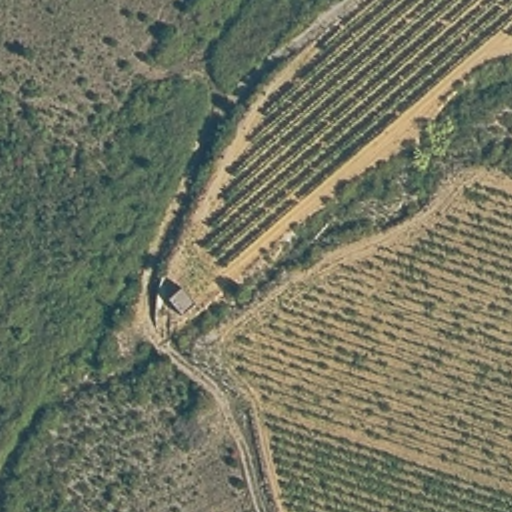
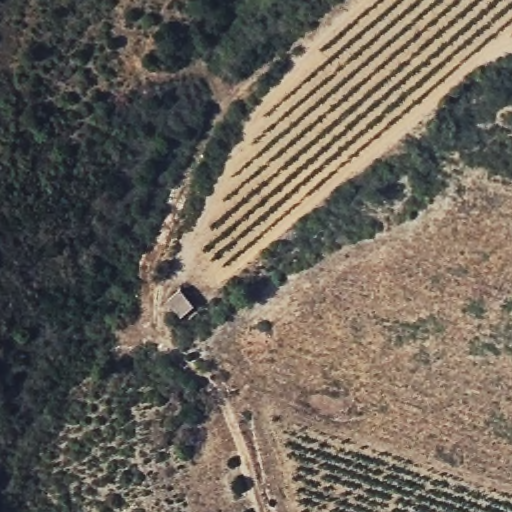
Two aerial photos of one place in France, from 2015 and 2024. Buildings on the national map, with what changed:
unchanged [(180,288),(191,303),(173,321),(161,303),(180,288)]

